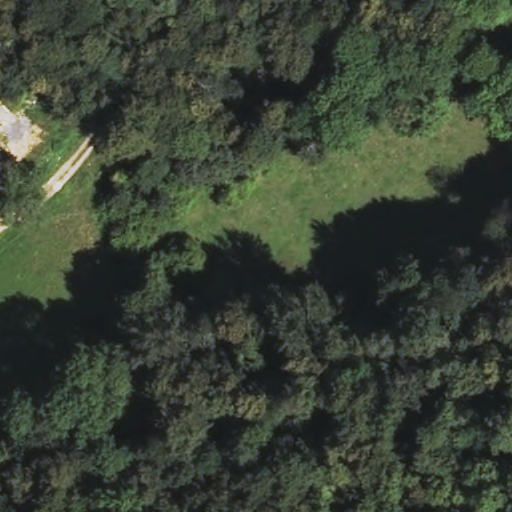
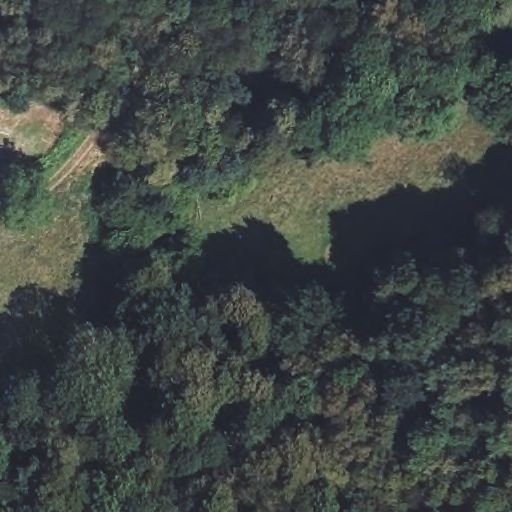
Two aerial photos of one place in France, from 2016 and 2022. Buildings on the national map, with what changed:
unchanged [(0,167),(1,171),(0,171),(0,167)]

